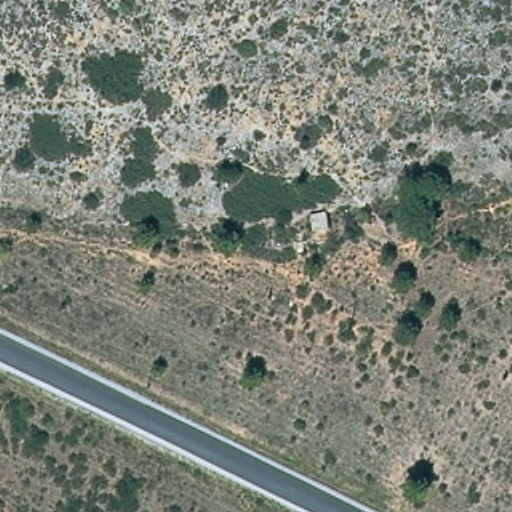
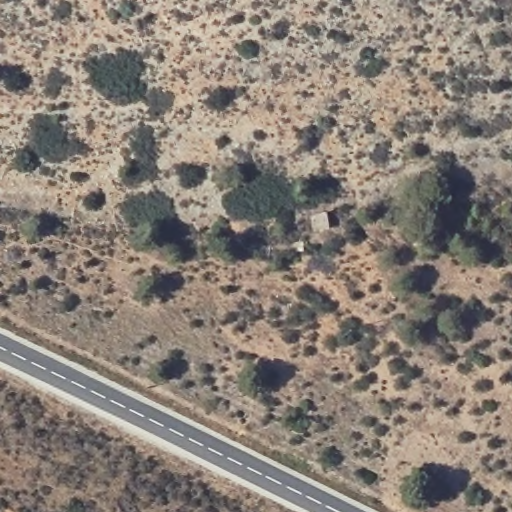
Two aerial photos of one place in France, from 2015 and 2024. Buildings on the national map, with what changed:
unchanged [(328,214),(332,234),(317,238),(312,217),(328,214)]

